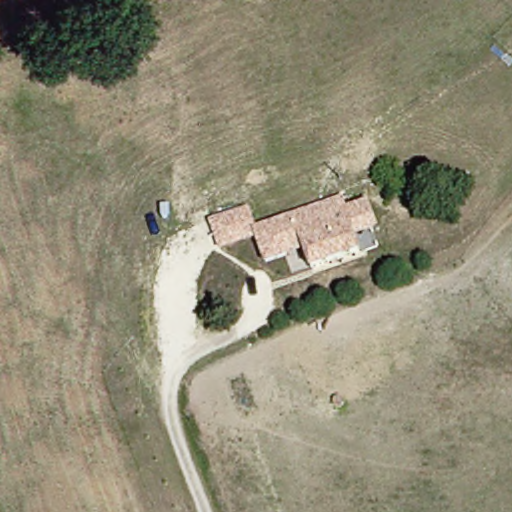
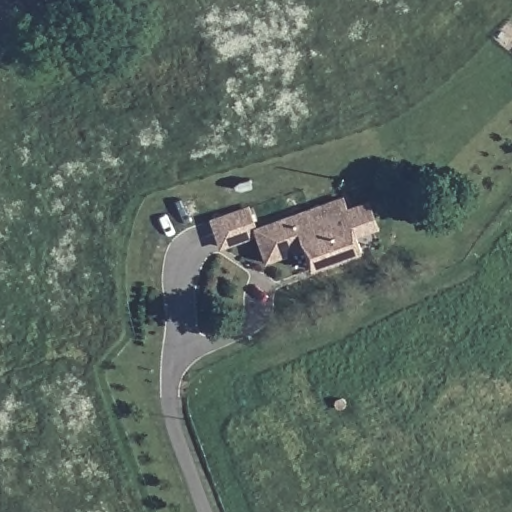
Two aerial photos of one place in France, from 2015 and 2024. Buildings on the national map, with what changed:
unchanged [(273,259),(263,227),(351,200),(364,258),(317,270),(312,250),(273,259)]
unchanged [(251,229),(254,239),(219,251),(207,221),(249,207),(255,227),(251,229)]

